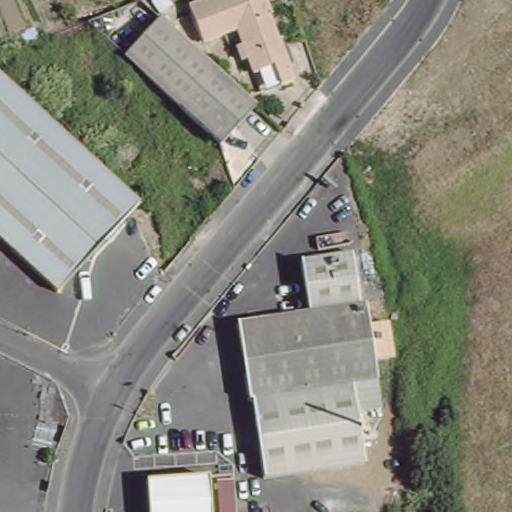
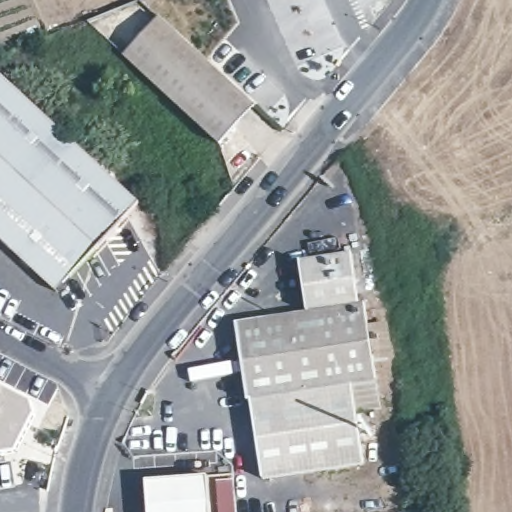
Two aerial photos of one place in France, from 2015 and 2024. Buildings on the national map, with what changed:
unchanged [(237,46),(244,44),(238,29),(204,41),(190,5),(202,0),(266,0),(270,12),(268,12),(292,78),(261,90),(248,55),(242,58),(237,46)]
unchanged [(218,144),(202,130),(124,58),(160,21),(254,106),(219,145),(218,144)]
unchanged [(0,72),(142,199),(60,289),(0,235),(0,72)]
unchanged [(305,311),(296,259),(347,250),(357,302),(362,301),(375,378),(249,399),(246,400),(233,323),(305,311)]
unchanged [(375,378),(379,405),(355,409),(363,460),(262,477),(249,399),(375,378)]
new [(38,418),(19,454),(3,458),(0,456),(0,386),(33,403),(38,418)]
unchanged [(212,512),(149,512),(147,484),(209,479),(212,512)]

